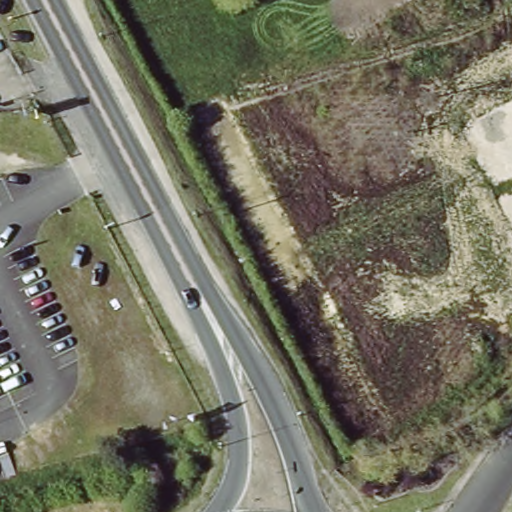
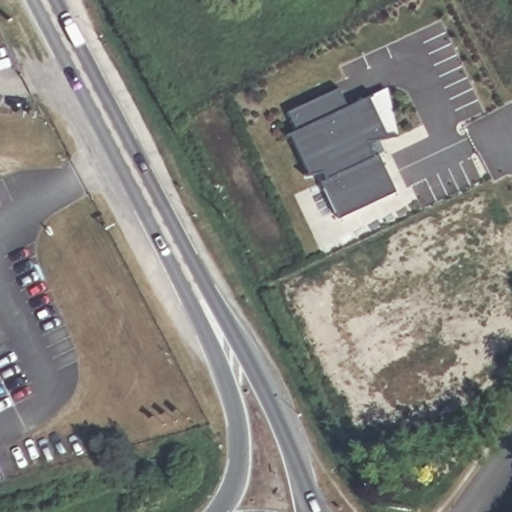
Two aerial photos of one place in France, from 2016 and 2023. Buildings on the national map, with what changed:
new [(382,140),(387,150),(382,154),(401,190),(342,219),(324,180),(328,179),(325,171),(311,175),(293,133),(300,130),(289,111),(342,87),(352,105),(370,96),(392,85),(402,135),(382,140)]

